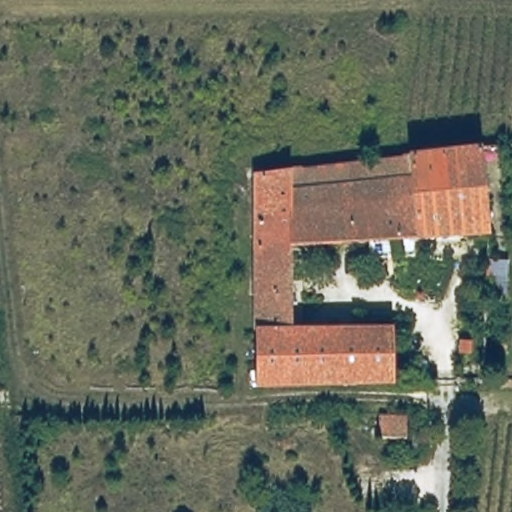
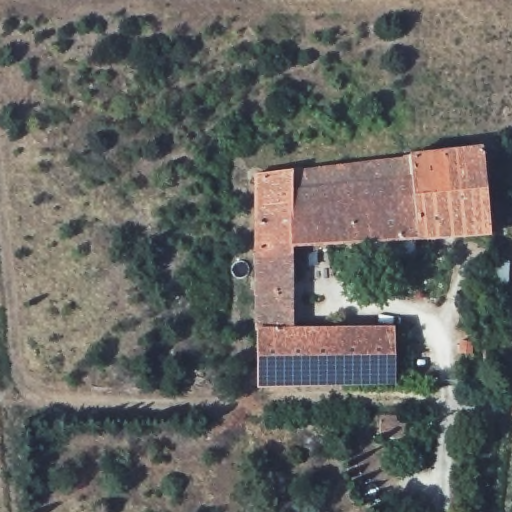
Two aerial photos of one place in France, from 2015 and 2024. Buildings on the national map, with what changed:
unchanged [(480,242),(290,246),(297,333),(395,335),(395,390),(260,389),(247,166),(385,155),(477,147),(480,242)]
unchanged [(507,295),(487,296),(487,262),(508,262),(507,295)]
unchanged [(380,438),(380,416),(405,417),(405,439),(380,438)]

